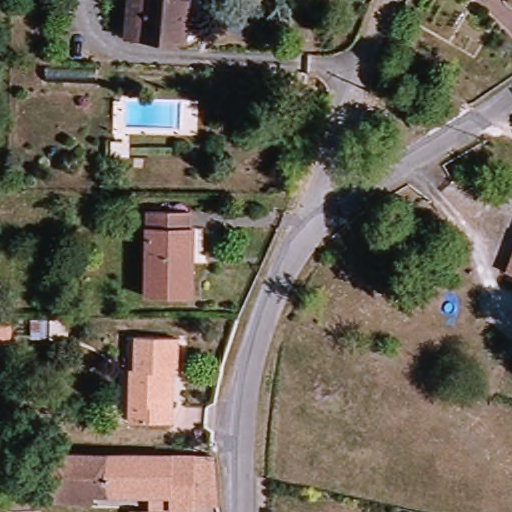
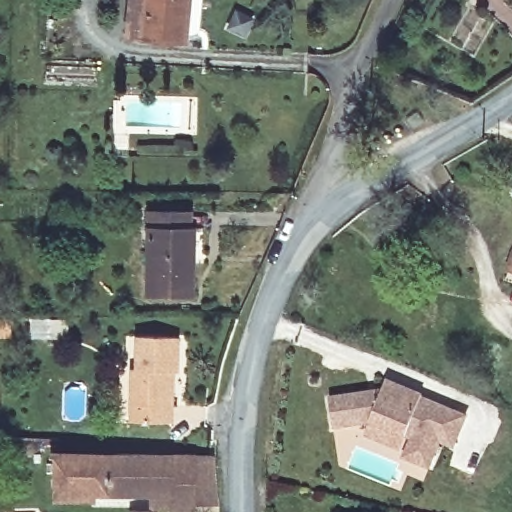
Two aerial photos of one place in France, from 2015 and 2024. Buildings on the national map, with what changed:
unchanged [(130,26),(132,0),(189,0),(187,30),(142,27),(130,26)]
unchanged [(435,113),(442,122),(431,130),(424,120),(435,113)]
unchanged [(160,220),(203,219),(203,284),(160,285),(160,220)]
unchanged [(67,323),(67,342),(30,341),(31,322),(67,323)]
unchanged [(182,423),(139,421),(139,369),(147,370),(147,337),(188,338),(187,373),(182,371),(182,406),(182,423)]
new [(338,427),(333,399),(387,389),(391,380),(427,394),(426,397),(471,414),(460,442),(446,437),(435,466),(410,456),(417,438),(410,434),(404,447),(371,434),(375,421),(338,427)]
unchanged [(204,507),(204,512),(161,511),(161,491),(66,491),(66,454),(205,456),(204,507)]
unchanged [(204,507),(205,456),(224,456),(226,508),(204,507)]

